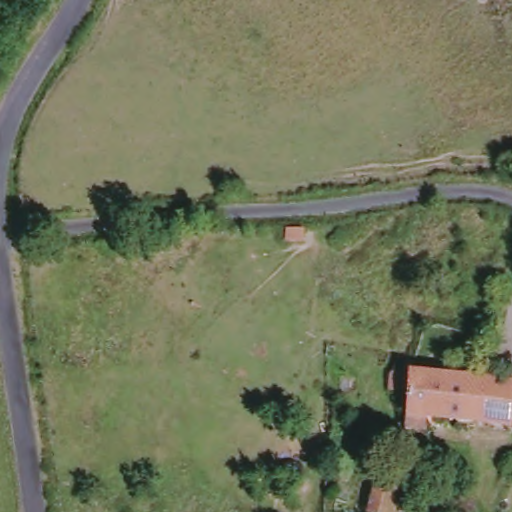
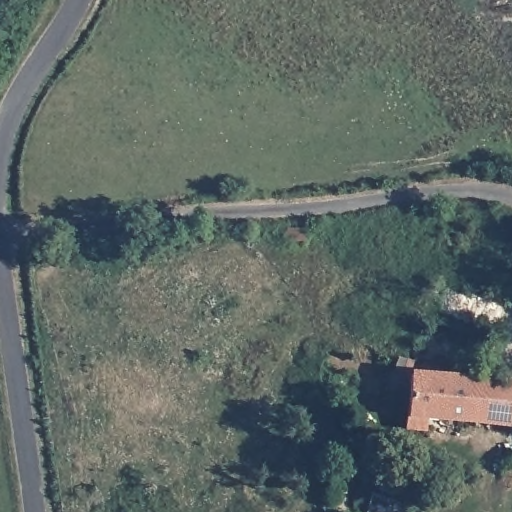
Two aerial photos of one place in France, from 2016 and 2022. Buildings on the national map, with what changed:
unchanged [(512,390),(512,428),(490,426),(428,420),(427,437),(404,434),(409,399),(391,395),(394,371),(396,364),(403,362),(413,367),(412,379),(443,382),(443,367),(455,367),(454,383),(468,385),(492,388),(512,390)]

